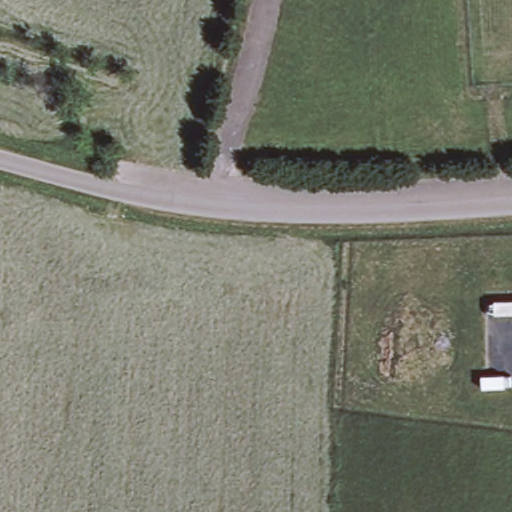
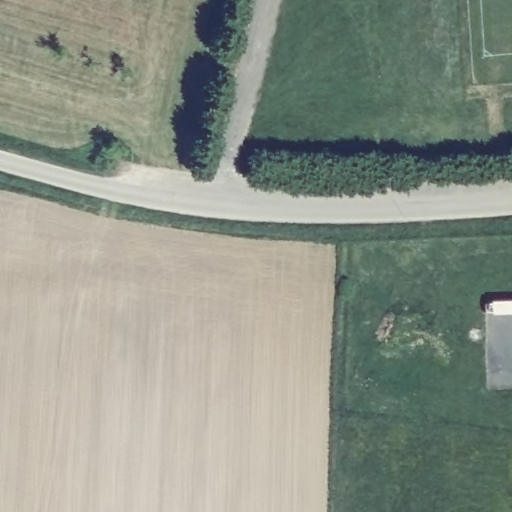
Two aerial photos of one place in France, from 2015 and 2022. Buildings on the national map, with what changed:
[]

